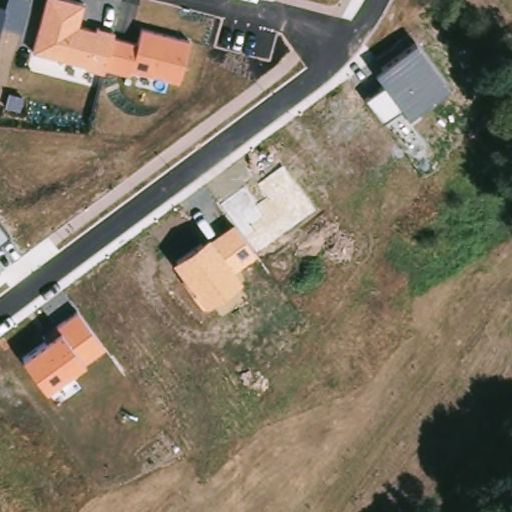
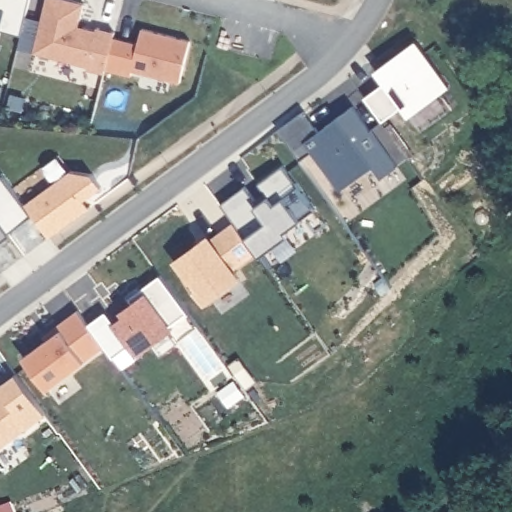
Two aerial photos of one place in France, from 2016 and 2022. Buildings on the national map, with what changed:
unchanged [(7,0),(27,0),(29,0),(21,33),(1,25),(0,27),(0,7),(5,9),(7,0)]
unchanged [(84,5),(79,27),(96,31),(96,27),(115,32),(114,38),(139,43),(141,29),(189,40),(179,84),(132,71),(131,76),(33,53),(46,0),(67,0),(84,5)]
unchanged [(366,98),(384,84),(384,83),(376,71),(417,40),(450,86),(408,117),(400,106),(382,120),(366,98)]
new [(313,129),(320,124),(347,104),(392,163),(377,175),(368,163),(335,188),(306,150),(295,159),(272,129),(299,109),(313,129)]
unchanged [(232,222),(220,205),(245,187),(257,204),(268,196),(258,182),(283,165),(316,210),(253,251),(232,222)]
new [(48,236),(25,205),(71,170),(93,174),(101,186),(82,199),(87,207),(48,236)]
unchanged [(253,251),(255,255),(231,266),(241,279),(206,305),(173,261),(211,234),(232,222),(253,251)]
unchanged [(0,241),(0,224),(8,235),(0,241)]
new [(169,323),(174,330),(121,368),(105,347),(88,325),(106,311),(115,321),(123,315),(120,311),(134,301),(130,296),(160,275),(187,310),(169,323)]
unchanged [(23,357),(60,330),(56,324),(76,310),(105,347),(84,362),(47,391),(23,357)]
new [(0,424),(0,364),(29,402),(0,424)]

